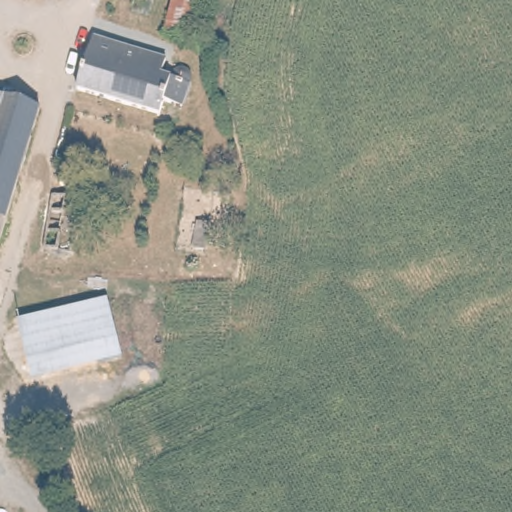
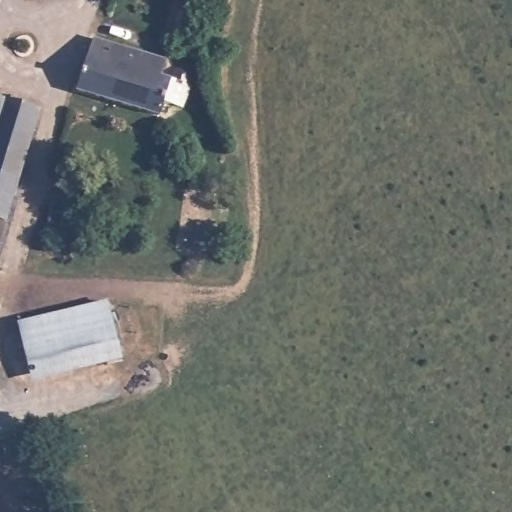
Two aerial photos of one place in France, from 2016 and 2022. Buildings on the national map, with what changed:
unchanged [(200,0),(187,39),(163,33),(172,0),(200,0)]
unchanged [(86,45),(169,57),(166,74),(181,75),(181,64),(194,66),(189,106),(172,105),(170,115),(80,101),(86,45)]
unchanged [(10,224),(0,251),(0,96),(47,109),(10,224)]
unchanged [(40,247),(50,183),(70,184),(62,250),(40,247)]
unchanged [(20,320),(111,297),(126,358),(34,376),(20,320)]

